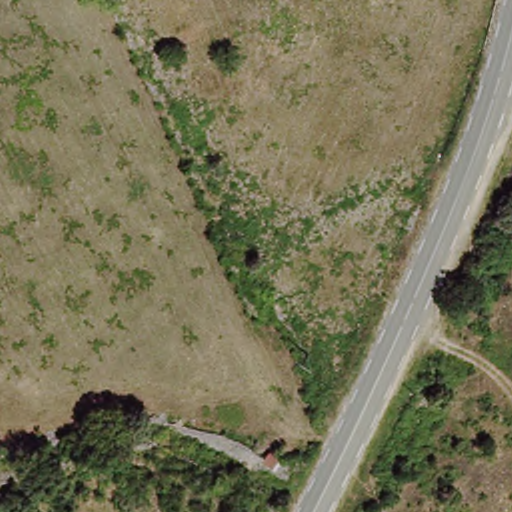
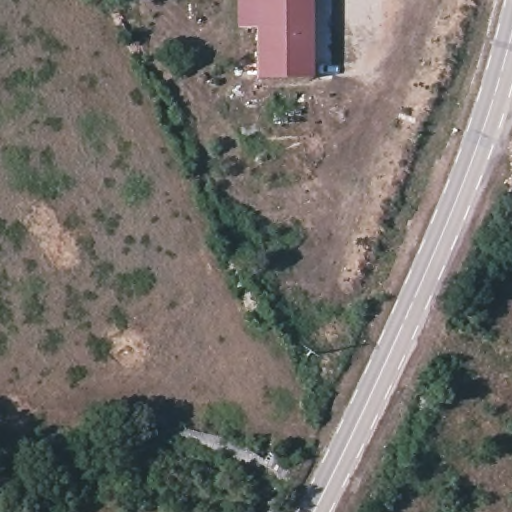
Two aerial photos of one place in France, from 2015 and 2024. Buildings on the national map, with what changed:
new [(260,85),(253,0),(328,0),(334,80),(260,85)]

